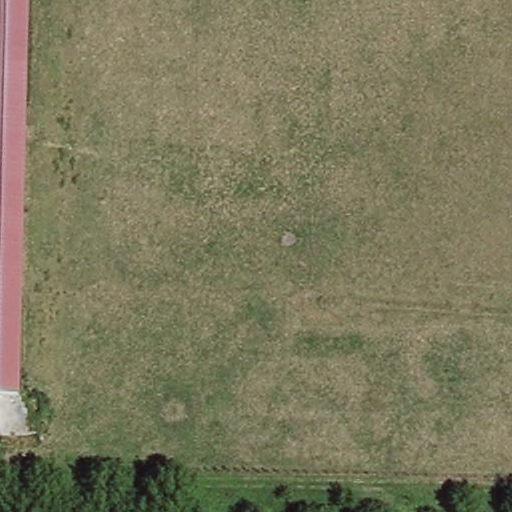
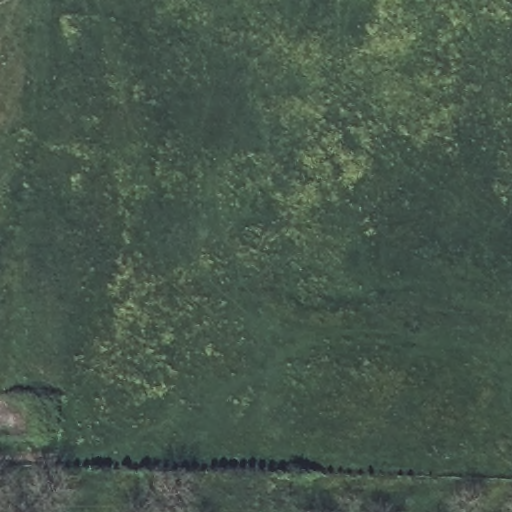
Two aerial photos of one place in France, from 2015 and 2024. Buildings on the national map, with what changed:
demolished [(0,0),(23,0),(30,392),(0,391),(0,0)]

